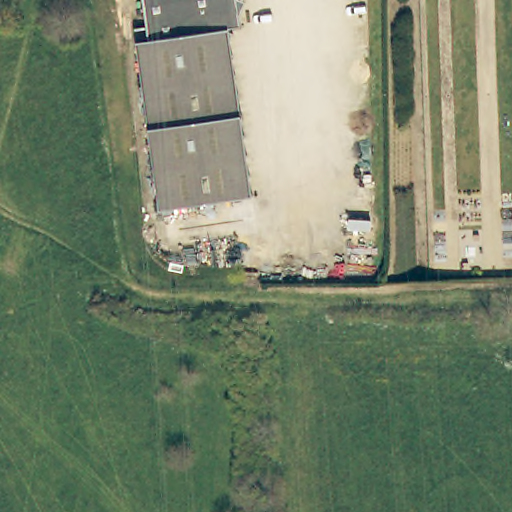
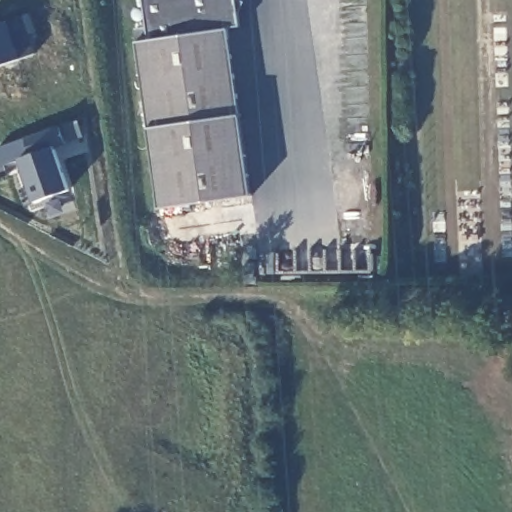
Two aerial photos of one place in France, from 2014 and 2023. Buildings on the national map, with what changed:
unchanged [(248,193),(156,206),(132,40),(135,39),(133,24),(142,22),(139,0),(238,0),(234,11),(236,23),(224,25),(248,193)]
new [(68,147),(57,151),(71,194),(37,206),(26,173),(36,170),(33,159),(5,169),(0,154),(0,151),(62,129),(68,147)]

